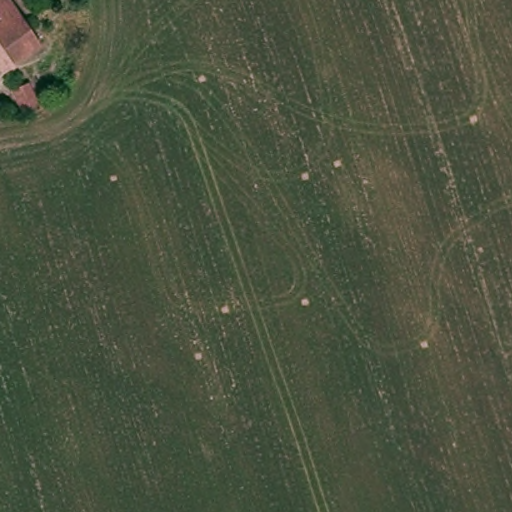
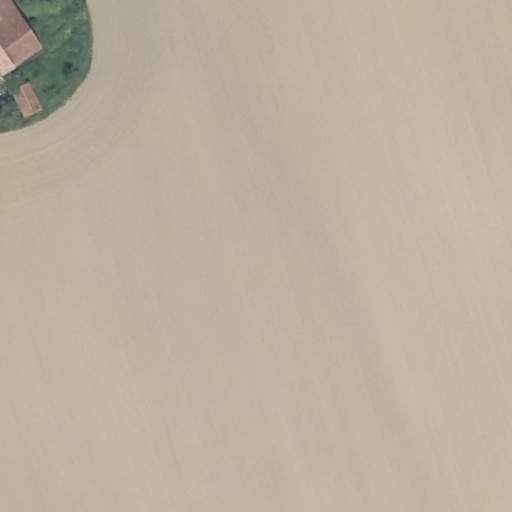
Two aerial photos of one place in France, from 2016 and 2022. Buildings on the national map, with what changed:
unchanged [(13,0),(35,33),(36,35),(37,37),(45,48),(17,65),(15,66),(0,76),(0,0),(13,0)]
unchanged [(27,116),(13,88),(21,84),(29,80),(35,92),(37,97),(37,98),(39,100),(40,102),(43,108),(27,116)]

